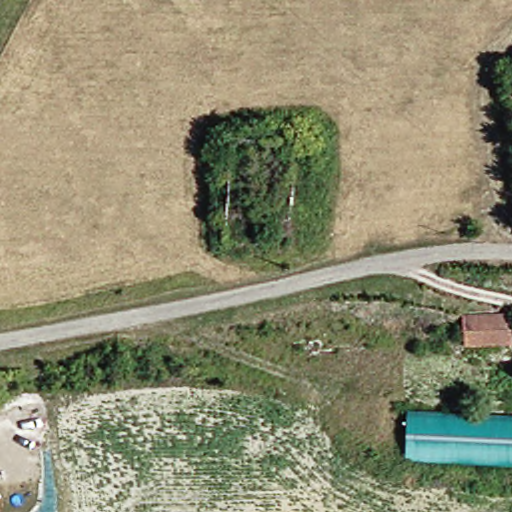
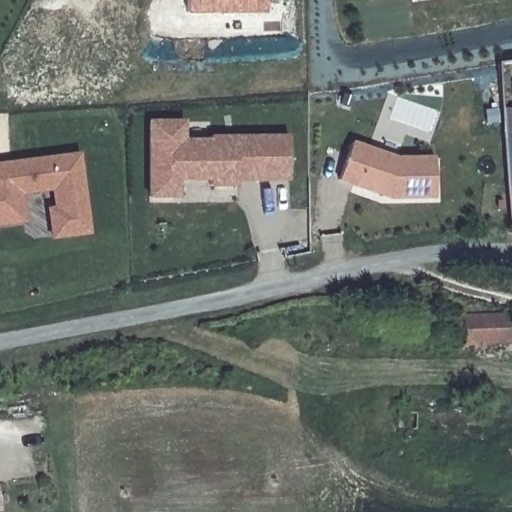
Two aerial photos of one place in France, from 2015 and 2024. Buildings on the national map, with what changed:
new [(267,0),(267,13),(189,14),(189,0),(267,0)]
new [(154,119),(187,118),(187,137),(214,137),(214,135),(292,134),(293,176),(261,176),(260,149),(242,149),(242,182),(214,183),(214,165),(182,165),(182,194),(155,195),(154,119)]
new [(356,139),(407,157),(438,156),(439,194),(395,195),(343,176),(356,139)]
new [(54,237),(50,205),(56,205),(54,190),(27,192),(30,222),(0,225),(0,159),(84,149),(95,232),(54,237)]
new [(242,149),(260,149),(261,176),(242,176),(242,149)]
new [(214,165),(215,176),(182,176),(182,165),(214,165)]
unchanged [(507,340),(455,341),(454,313),(505,313),(507,340)]
demolished [(455,468),(396,463),(400,416),(455,420),(455,468)]
demolished [(455,468),(455,420),(512,425),(512,472),(455,468)]

